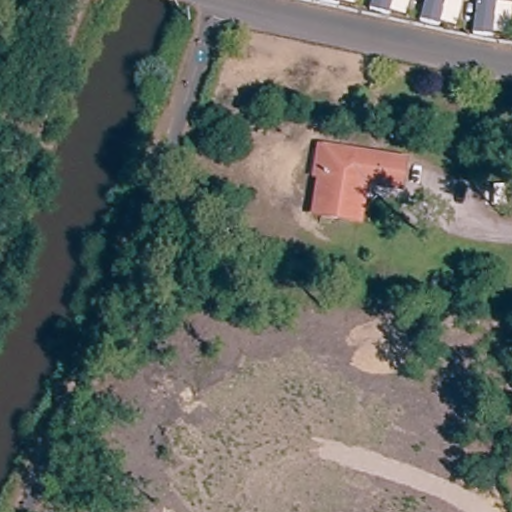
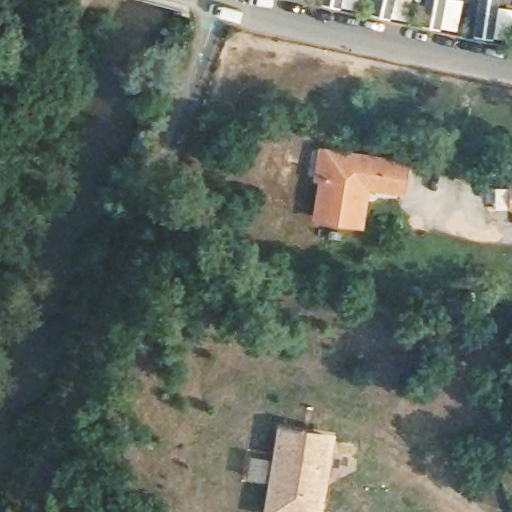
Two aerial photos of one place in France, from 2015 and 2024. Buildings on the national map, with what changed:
unchanged [(390,181),(386,196),(351,189),(342,228),(301,220),(310,181),(301,179),(307,150),(317,152),(393,168),(390,181)]
new [(324,512),(264,512),(278,424),(336,432),(324,512)]

